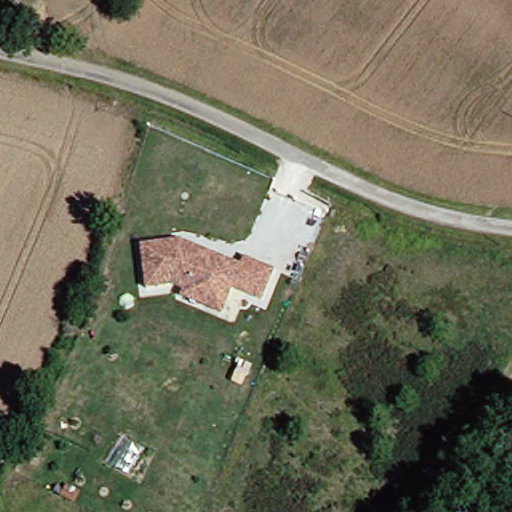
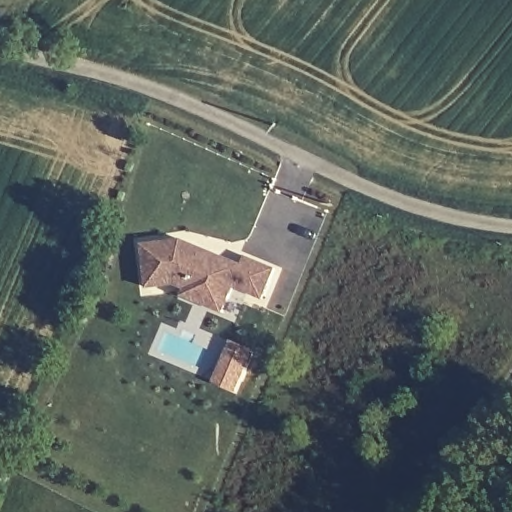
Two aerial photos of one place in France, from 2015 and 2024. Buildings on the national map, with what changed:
unchanged [(184,296),(187,289),(176,284),(149,292),(137,250),(181,239),(200,247),(212,252),(244,265),(247,256),(277,269),(265,298),(236,286),(231,298),(225,312),(184,296)]
new [(231,339),(255,350),(237,393),(212,383),(231,339)]

